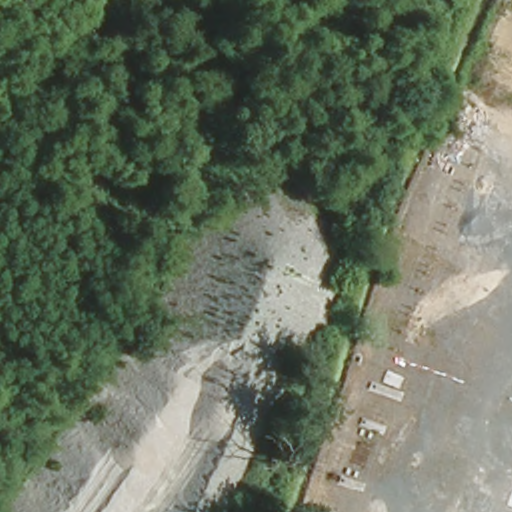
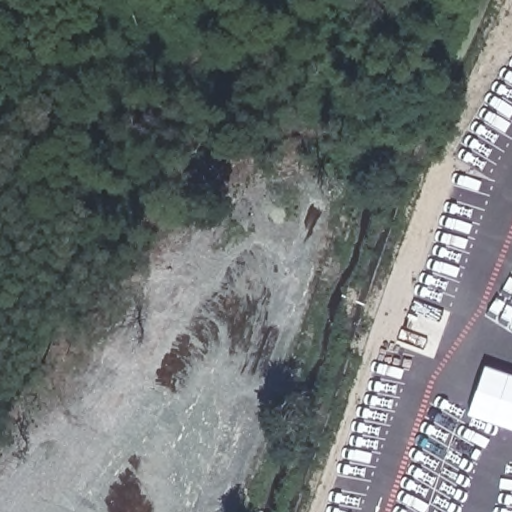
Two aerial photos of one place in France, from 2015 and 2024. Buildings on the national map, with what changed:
new [(512,376),(512,429),(469,415),(485,367),(512,376)]

